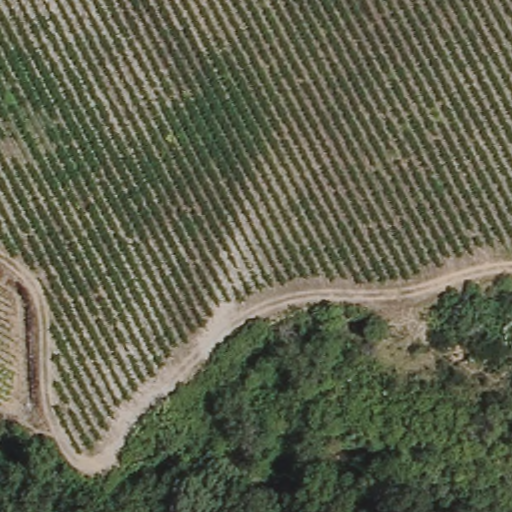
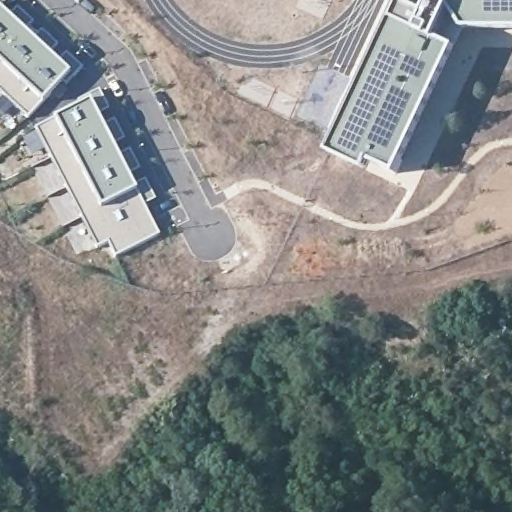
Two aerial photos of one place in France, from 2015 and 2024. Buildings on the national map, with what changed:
new [(454,6),(440,40),(454,47),(396,170),(371,158),(367,168),(331,152),(402,1),(430,14),(437,0),(512,0),(512,27),(466,27),(454,6)]
new [(0,9),(70,74),(44,102),(29,118),(0,92),(0,9)]
new [(117,256),(109,241),(98,246),(38,128),(58,118),(92,101),(136,190),(159,234),(117,256)]

